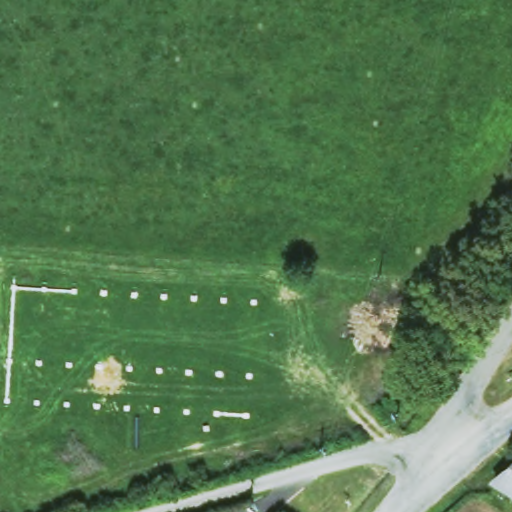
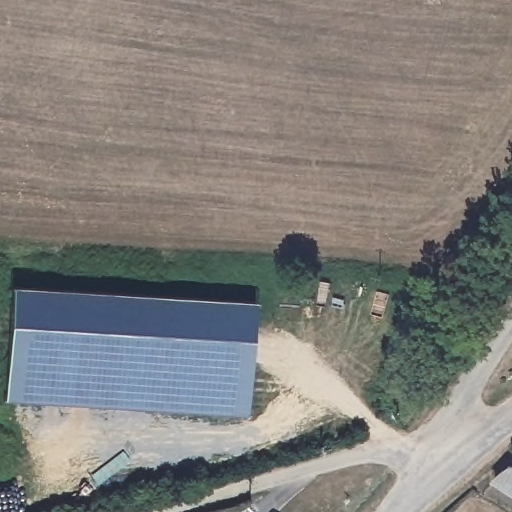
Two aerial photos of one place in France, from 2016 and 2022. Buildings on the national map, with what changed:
new [(12,286),(255,302),(249,415),(5,400),(12,286)]
demolished [(491,481),(512,457),(512,494),(491,481)]
new [(495,472),(512,459),(512,483),(495,472)]

